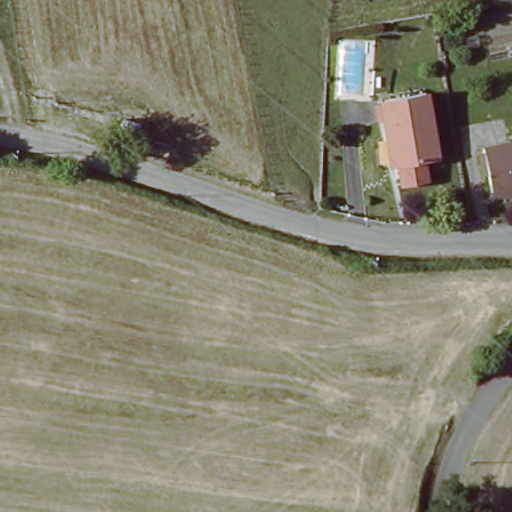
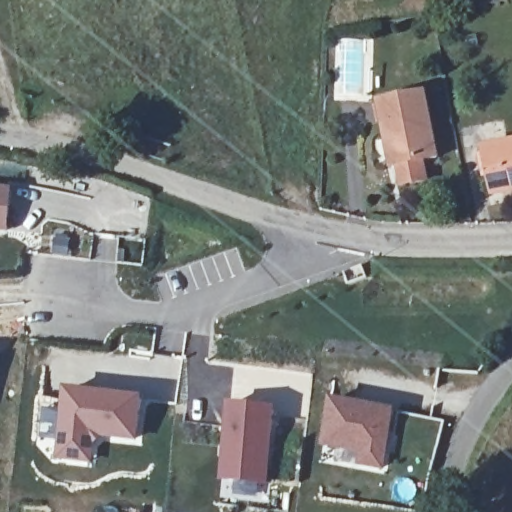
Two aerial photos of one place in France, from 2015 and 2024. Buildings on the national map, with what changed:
unchanged [(426,91),(438,158),(393,166),(381,99),(426,91)]
unchanged [(512,145),(512,191),(489,195),(482,150),(512,145)]
new [(0,188),(8,189),(5,228),(0,227),(0,188)]
new [(60,441),(65,389),(138,396),(133,436),(92,431),(90,444),(89,459),(58,455),(60,441)]
new [(398,410),(386,472),(358,466),(360,454),(321,446),(331,397),(398,410)]
new [(276,407),(269,485),(220,479),(228,401),(276,407)]

